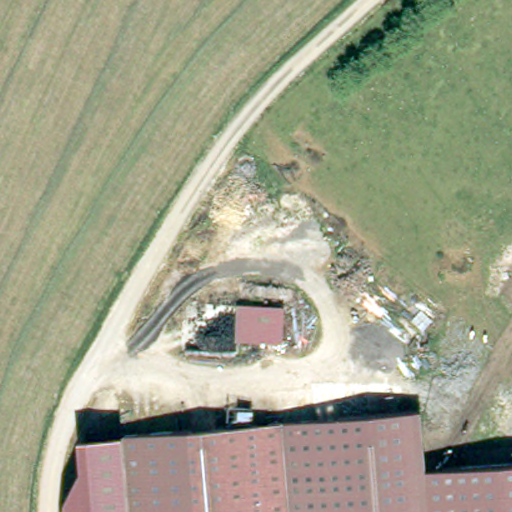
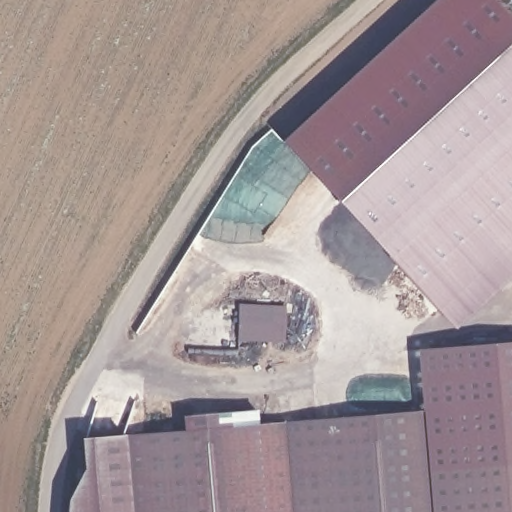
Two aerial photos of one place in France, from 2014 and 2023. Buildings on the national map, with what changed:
new [(494,0),(512,20),(512,275),(454,328),(283,140),(434,0),(494,0)]
unchanged [(279,306),(278,341),(234,339),(236,305),(279,306)]
new [(423,412),(418,348),(512,341),(512,469),(409,478),(404,416),(423,412)]
unchanged [(404,416),(409,478),(512,469),(512,512),(132,512),(126,440),(404,416)]
unchanged [(132,512),(69,512),(70,505),(85,473),(83,443),(126,440),(132,512)]

